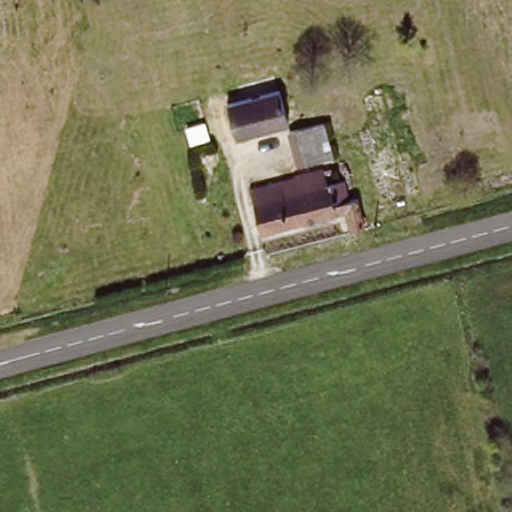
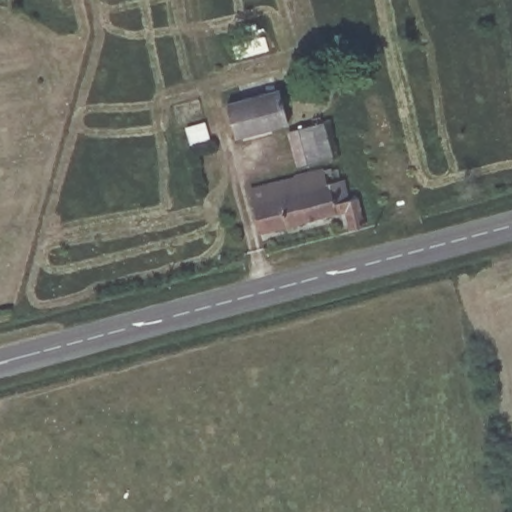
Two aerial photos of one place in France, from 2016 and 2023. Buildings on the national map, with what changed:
unchanged [(278,90),(287,126),(235,139),(227,102),(278,90)]
unchanged [(322,123),(330,154),(305,160),(297,129),(322,123)]
unchanged [(352,233),(347,215),(262,235),(252,195),(332,176),(332,180),(339,178),(345,197),(353,195),(364,230),(352,233)]

